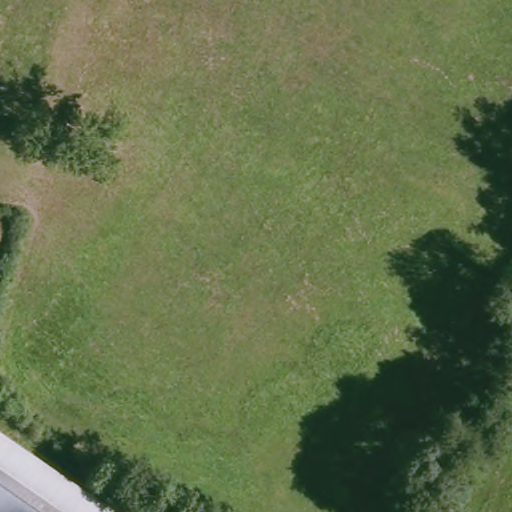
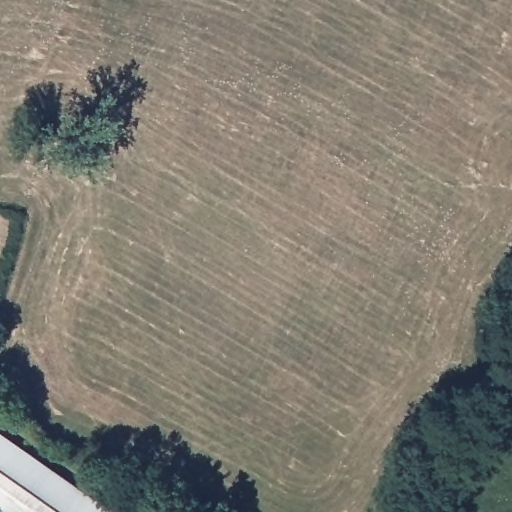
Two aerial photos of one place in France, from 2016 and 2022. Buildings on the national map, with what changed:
unchanged [(0,512),(0,434),(118,512),(0,512)]

